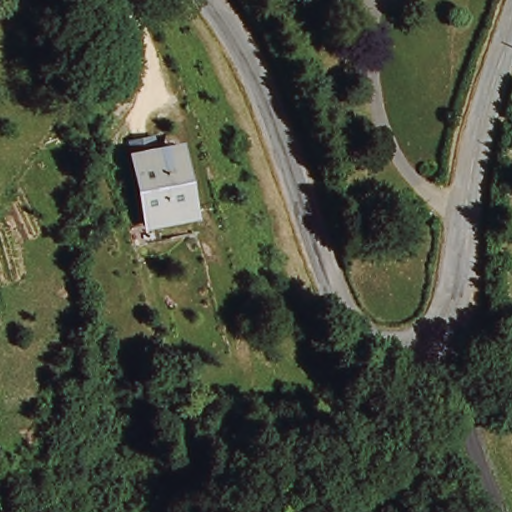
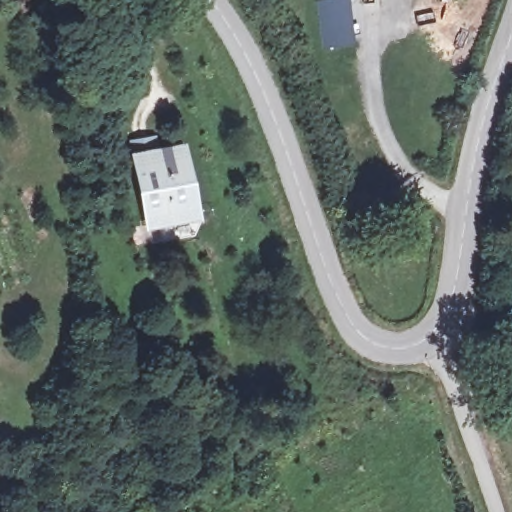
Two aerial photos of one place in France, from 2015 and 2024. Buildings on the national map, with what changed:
new [(354,45),(323,50),(319,1),(324,0),(347,0),(354,45)]
unchanged [(179,146),(194,214),(151,223),(136,156),(179,146)]

